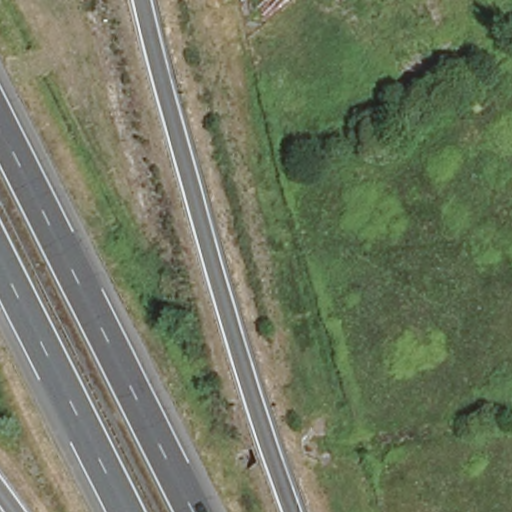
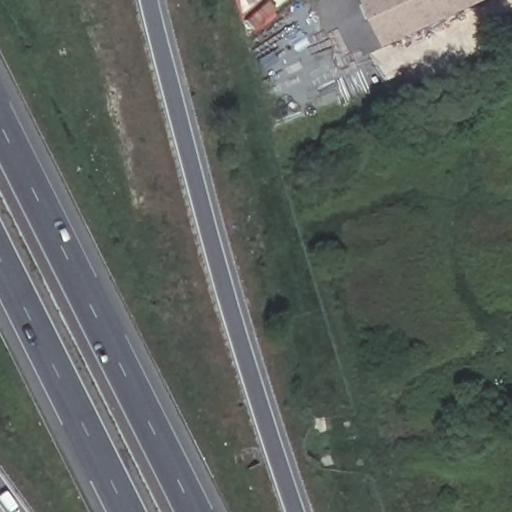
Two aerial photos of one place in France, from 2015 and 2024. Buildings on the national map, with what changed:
new [(370,0),(488,0),(391,46),(370,0)]

